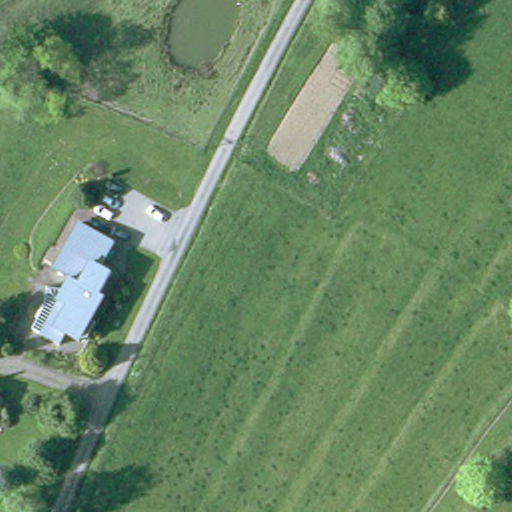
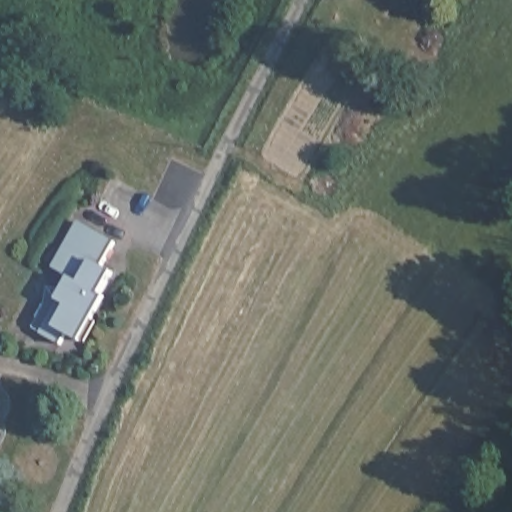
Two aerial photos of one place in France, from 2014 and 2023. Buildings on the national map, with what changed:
unchanged [(74,219),(110,234),(99,262),(85,256),(73,276),(65,271),(56,286),(45,282),(74,219)]
unchanged [(75,337),(60,330),(56,338),(25,320),(27,316),(39,300),(35,297),(45,282),(56,286),(65,271),(73,276),(85,256),(99,262),(103,265),(93,287),(100,291),(75,337)]

